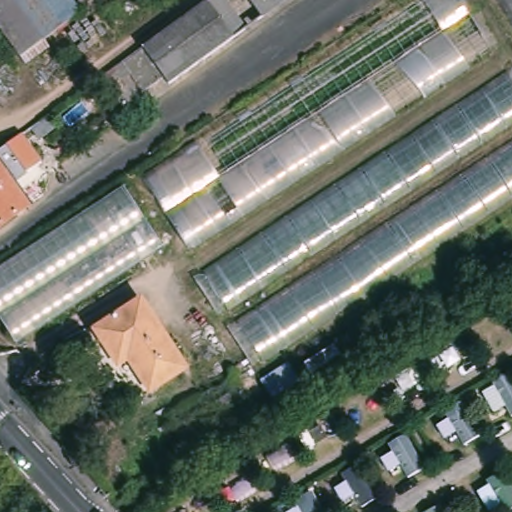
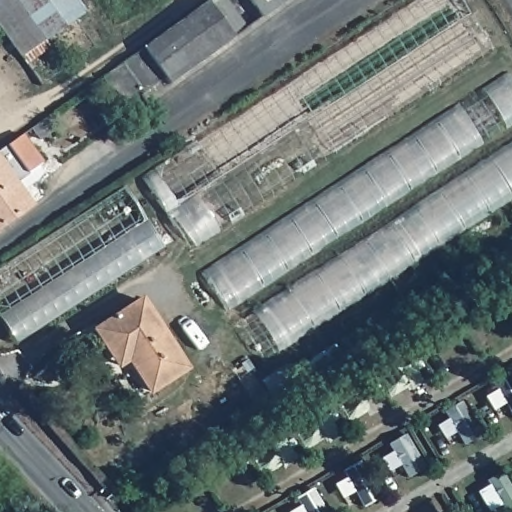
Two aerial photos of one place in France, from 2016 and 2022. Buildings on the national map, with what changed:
unchanged [(41,45),(45,51),(23,67),(0,35),(0,0),(64,0),(77,19),(41,45)]
unchanged [(167,246),(160,253),(13,346),(0,325),(0,266),(120,191),(150,229),(164,216),(138,177),(422,0),(455,0),(490,58),(179,262),(167,246)]
unchanged [(163,90),(158,83),(118,112),(97,83),(212,0),(289,0),(163,90)]
unchanged [(512,89),(512,200),(255,366),(196,279),(504,78),(512,89)]
unchanged [(56,126),(39,139),(31,128),(49,116),(56,126)]
unchanged [(41,161),(38,164),(42,171),(36,179),(19,191),(28,205),(0,224),(0,151),(22,135),(41,161)]
unchanged [(110,355),(94,331),(141,299),(186,368),(150,392),(127,359),(117,366),(110,355)]
unchanged [(299,381),(272,398),(271,396),(256,405),(252,399),(267,389),(261,379),(288,363),(299,381)]
unchanged [(241,412),(229,419),(217,401),(228,393),(241,412)]

